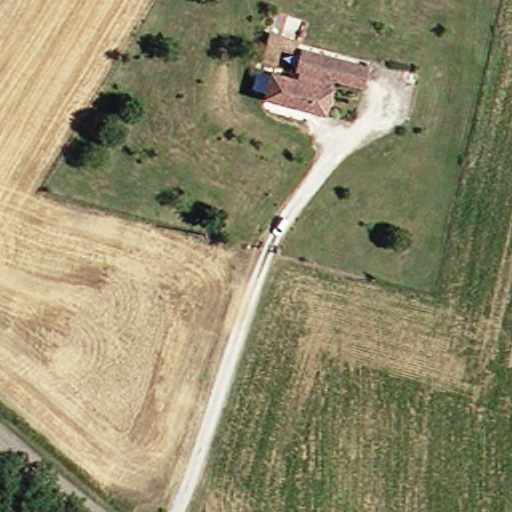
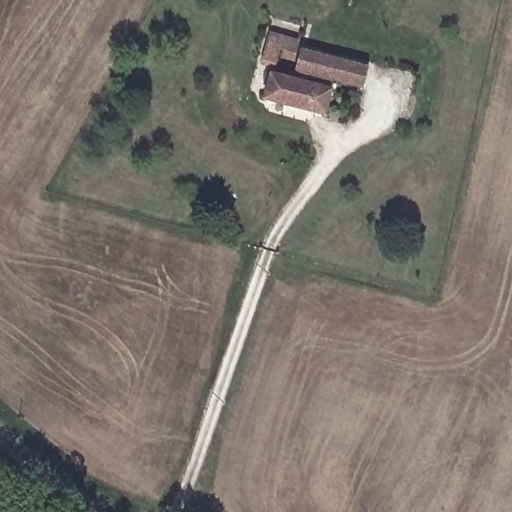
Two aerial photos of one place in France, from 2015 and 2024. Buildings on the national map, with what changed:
unchanged [(326,79),(317,116),(255,99),(262,73),(289,81),(293,69),(284,67),(289,50),(354,67),(349,86),(326,79)]

